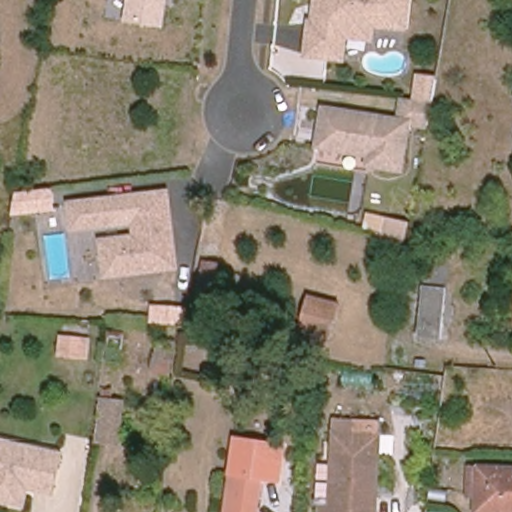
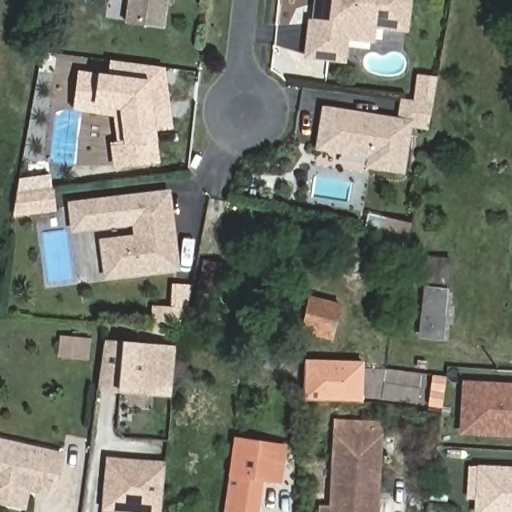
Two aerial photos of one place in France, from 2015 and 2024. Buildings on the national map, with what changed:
unchanged [(163,26),(128,21),(132,0),(168,0),(163,26)]
unchanged [(357,24),(350,29),(346,61),(311,57),(315,25),(318,25),(319,19),(321,0),(412,0),(408,30),(357,24)]
new [(113,169),(110,143),(118,142),(115,115),(74,110),(80,71),(107,75),(109,60),(165,68),(173,130),(156,132),(160,164),(113,169)]
unchanged [(440,77),(431,131),(414,129),(406,174),(366,170),(368,157),(322,151),(327,109),(399,119),(402,98),(414,100),(418,75),(440,77)]
unchanged [(11,216),(15,193),(53,189),(54,212),(11,216)]
unchanged [(172,215),(156,217),(158,236),(174,234),(178,265),(111,274),(107,242),(141,238),(139,219),(78,227),(75,205),(169,193),(172,215)]
new [(389,219),(412,223),(408,244),(384,238),(389,219)]
unchanged [(443,340),(420,338),(427,256),(449,258),(443,340)]
unchanged [(214,308),(198,305),(204,272),(219,275),(214,308)]
unchanged [(331,341),(301,333),(310,297),(341,306),(331,341)]
unchanged [(91,339),(88,361),(59,359),(62,337),(91,339)]
demolished [(180,375),(143,369),(147,344),(167,346),(169,340),(184,342),(180,375)]
new [(99,390),(104,342),(175,346),(171,396),(99,390)]
new [(308,362),(361,364),(359,403),(307,402),(308,362)]
demolished [(119,446),(97,443),(105,376),(117,377),(116,393),(126,395),(119,446)]
new [(468,383),(512,385),(512,433),(481,431),(466,430),(467,410),(468,383)]
unchanged [(332,510),(336,435),(336,418),(382,420),(379,437),(376,495),(376,512),(322,512),(322,510),(332,510)]
unchanged [(262,477),(230,472),(233,437),(285,444),(280,483),(262,482),(262,477)]
unchanged [(9,502),(0,500),(0,441),(9,444),(7,451),(32,457),(34,449),(67,456),(59,493),(33,488),(32,488),(28,506),(10,502),(9,502)]
new [(107,457),(165,462),(162,512),(108,512),(102,512),(107,457)]
unchanged [(477,512),(478,499),(467,499),(468,468),(479,469),(512,469),(512,512),(477,512)]
unchanged [(262,477),(257,512),(225,512),(230,472),(262,477)]

